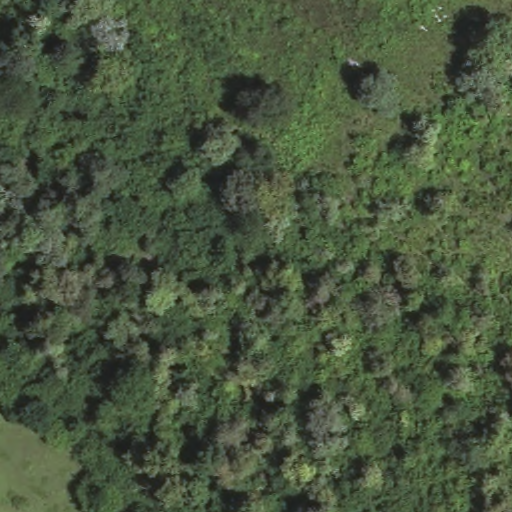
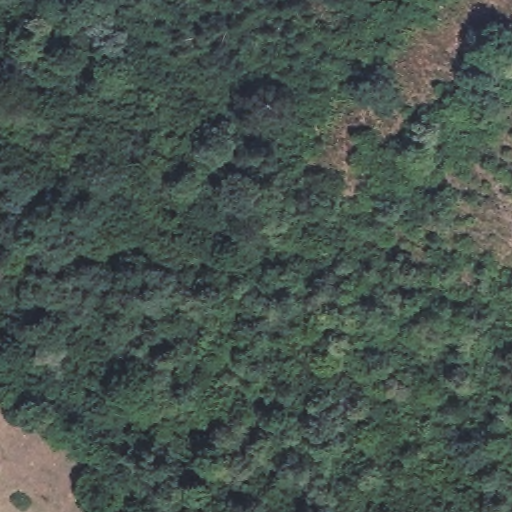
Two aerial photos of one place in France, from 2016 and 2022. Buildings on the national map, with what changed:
[]

